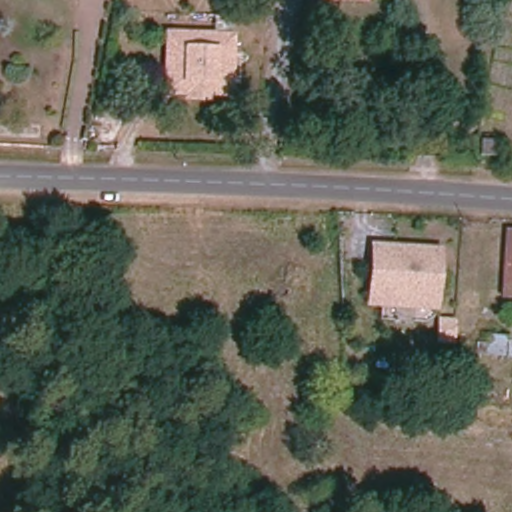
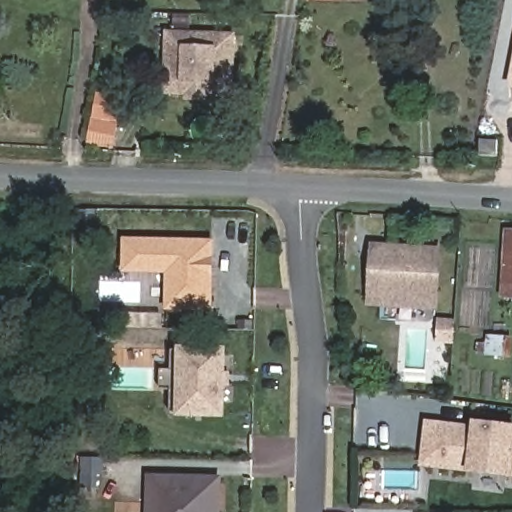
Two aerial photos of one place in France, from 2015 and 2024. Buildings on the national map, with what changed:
unchanged [(238,31),(235,96),(165,94),(167,28),(238,31)]
new [(509,87),(512,68),(512,88),(509,87)]
unchanged [(498,141),(497,157),(479,156),(481,140),(498,141)]
unchanged [(512,231),(512,298),(503,297),(507,231),(512,231)]
new [(121,272),(123,237),(215,239),(214,310),(165,309),(165,273),(121,272)]
unchanged [(439,310),(366,305),(369,241),(442,246),(439,310)]
unchanged [(458,343),(435,343),(436,316),(458,317),(458,343)]
unchanged [(512,337),(512,366),(493,366),(494,336),(512,337)]
new [(178,417),(179,345),(229,346),(228,418),(178,417)]
demolished [(491,446),(466,438),(475,412),(499,420),(491,446)]
new [(468,472),(422,466),(427,420),(474,425),(474,421),(512,425),(512,477),(468,472)]
new [(223,476),(222,512),(147,512),(148,474),(223,476)]

